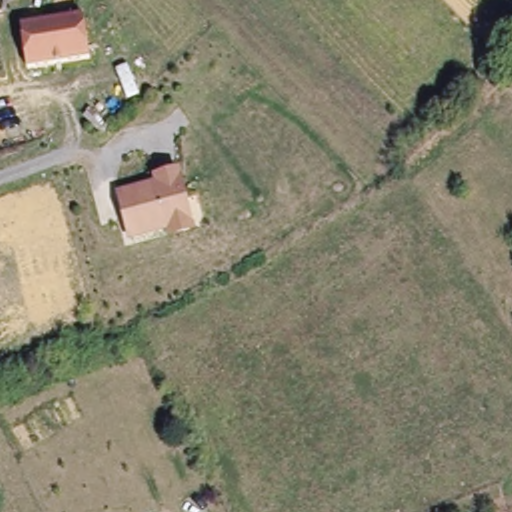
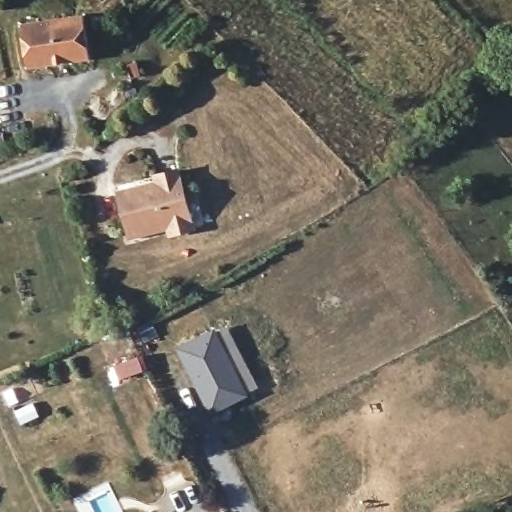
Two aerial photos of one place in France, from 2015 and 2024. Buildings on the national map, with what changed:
unchanged [(88,63),(25,70),(20,28),(81,21),(88,63)]
unchanged [(170,238),(168,230),(129,241),(118,198),(153,188),(155,190),(162,188),(159,178),(176,174),(190,224),(192,231),(170,238)]
new [(227,324),(259,387),(209,415),(176,346),(227,324)]

